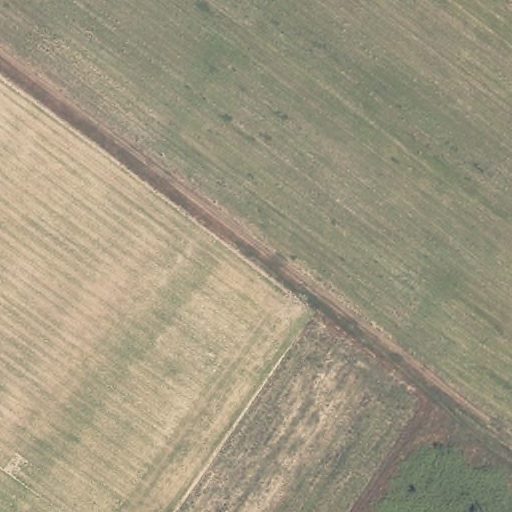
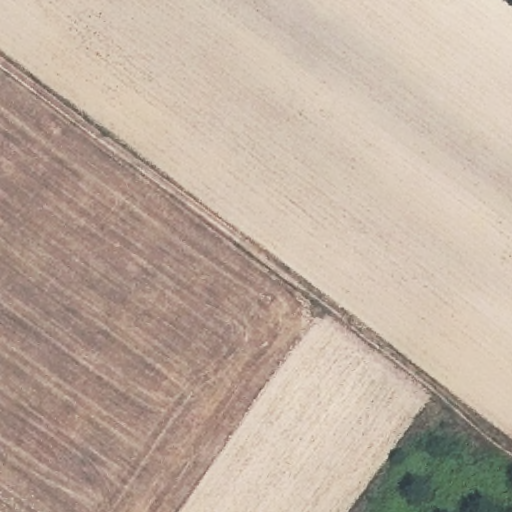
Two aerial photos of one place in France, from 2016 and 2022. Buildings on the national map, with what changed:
[]

